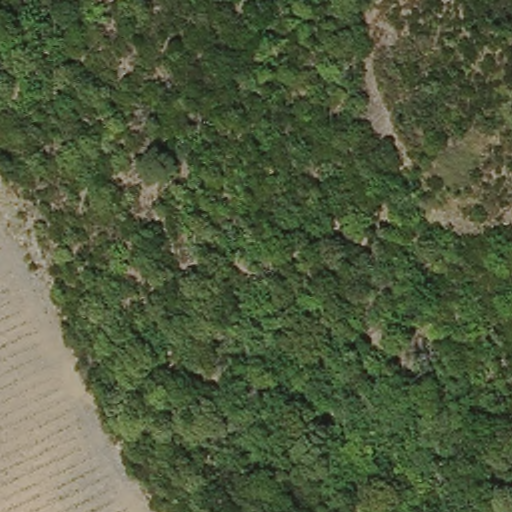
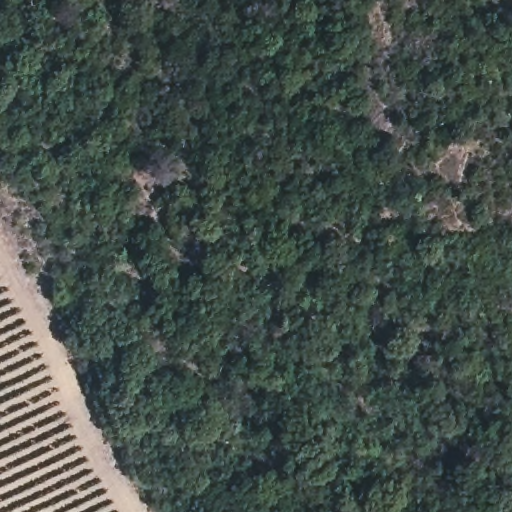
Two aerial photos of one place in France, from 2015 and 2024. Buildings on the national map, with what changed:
[]

